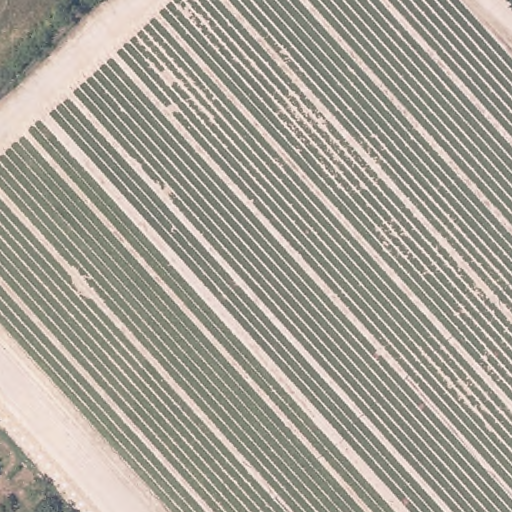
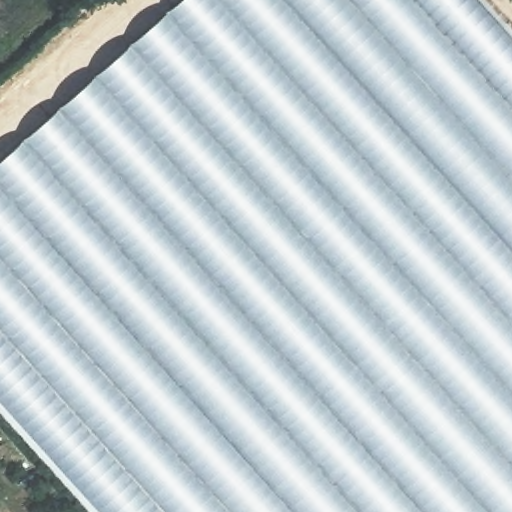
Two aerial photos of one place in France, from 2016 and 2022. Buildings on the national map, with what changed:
new [(512,38),(512,512),(230,512),(0,258),(0,159),(177,0),(477,0),(512,38)]
unchanged [(0,258),(230,512),(99,512),(0,402),(0,258)]

